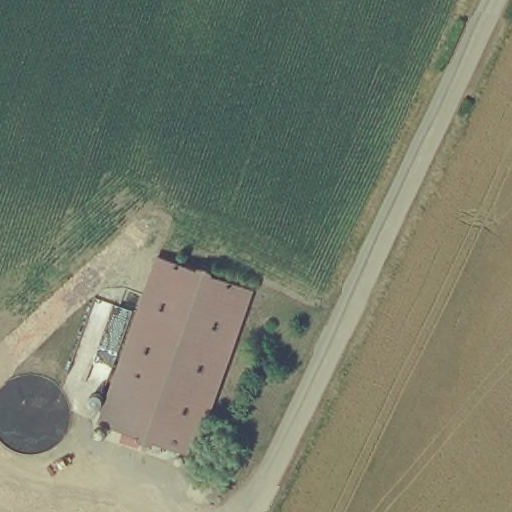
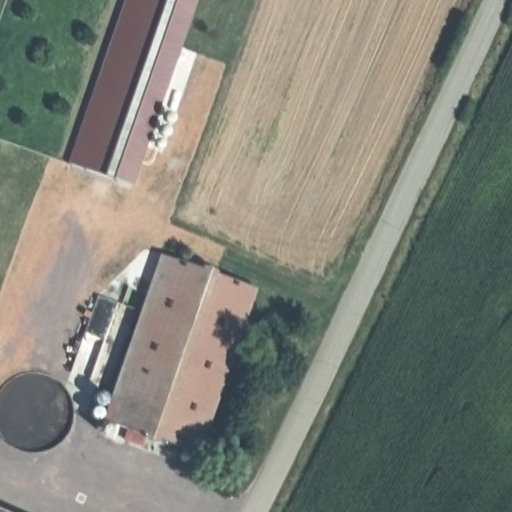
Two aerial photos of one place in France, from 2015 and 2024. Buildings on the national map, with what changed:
new [(196,0),(131,184),(117,179),(72,163),(79,143),(129,0),(196,0)]
unchanged [(107,419),(165,253),(267,289),(209,453),(107,419)]
new [(0,506),(14,512),(0,512),(0,506)]

